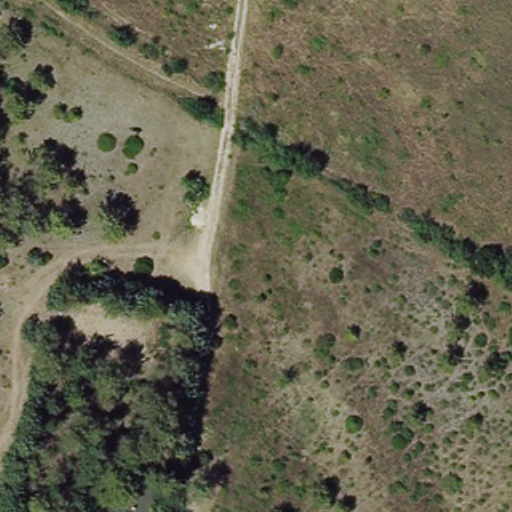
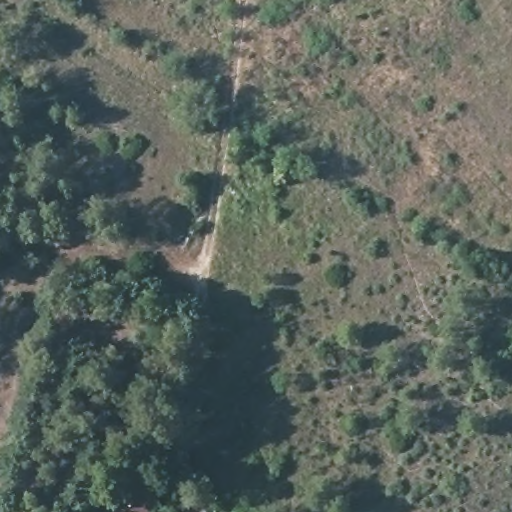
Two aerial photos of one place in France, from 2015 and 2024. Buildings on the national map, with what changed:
unchanged [(123,501),(132,487),(156,505),(152,512),(108,512),(115,499),(123,501)]

